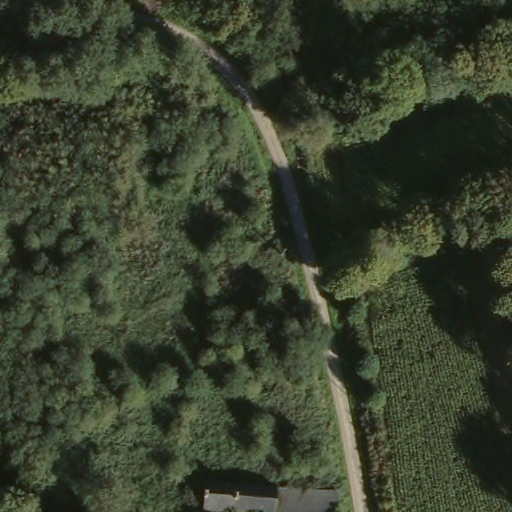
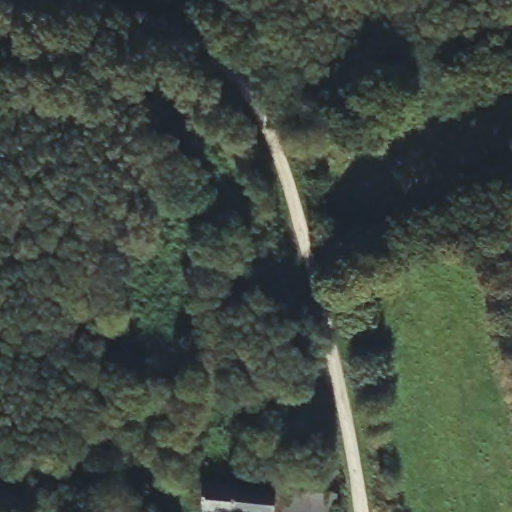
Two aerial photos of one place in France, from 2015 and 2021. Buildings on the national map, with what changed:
unchanged [(333,494),(333,512),(197,512),(200,488),(333,494)]

